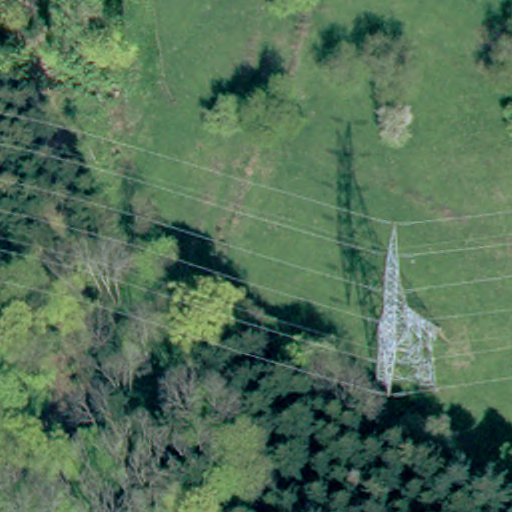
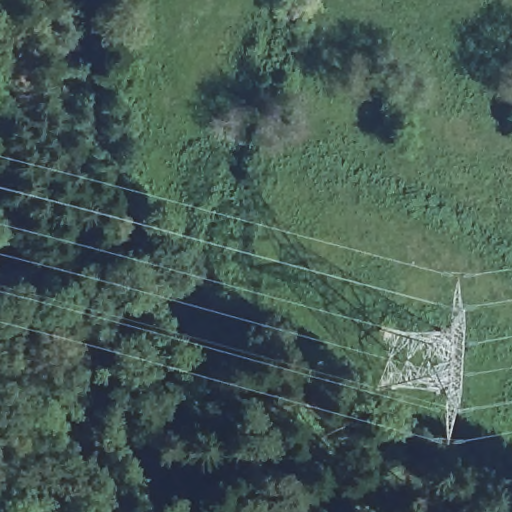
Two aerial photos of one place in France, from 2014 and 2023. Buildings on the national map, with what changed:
[]

